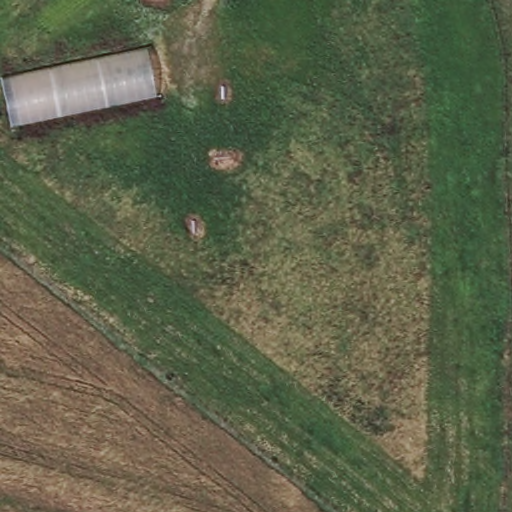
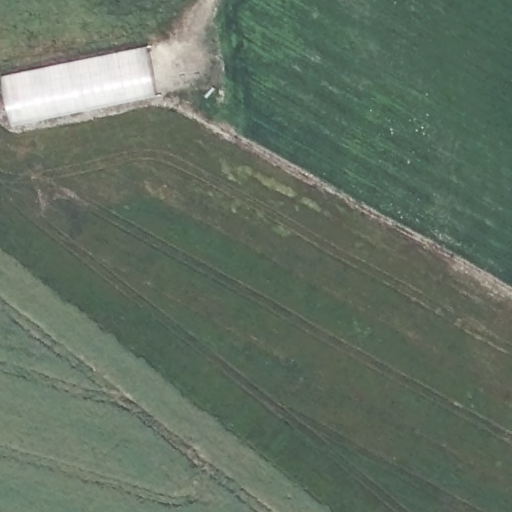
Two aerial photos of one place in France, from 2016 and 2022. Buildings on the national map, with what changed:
unchanged [(2,81),(149,49),(157,91),(11,122),(2,81)]

